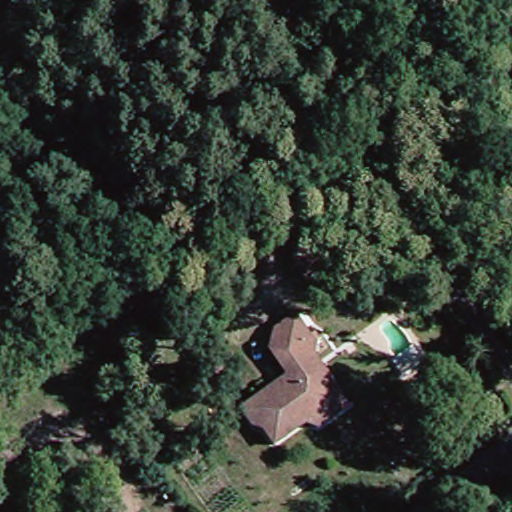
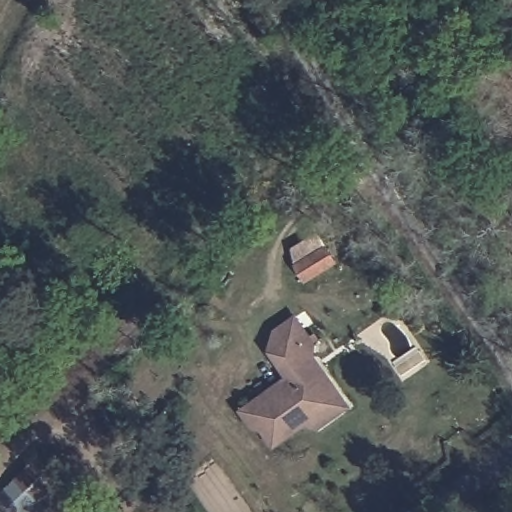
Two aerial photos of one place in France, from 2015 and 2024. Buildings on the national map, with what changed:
new [(307,285),(295,263),(292,249),(319,232),(340,264),(307,285)]
unchanged [(258,433),(255,430),(249,435),(234,415),(255,399),(278,382),(284,378),(267,354),(266,331),(290,316),(299,330),(309,347),(303,350),(317,372),(332,393),(343,411),(314,431),(307,421),(276,442),(268,448),(258,433)]

